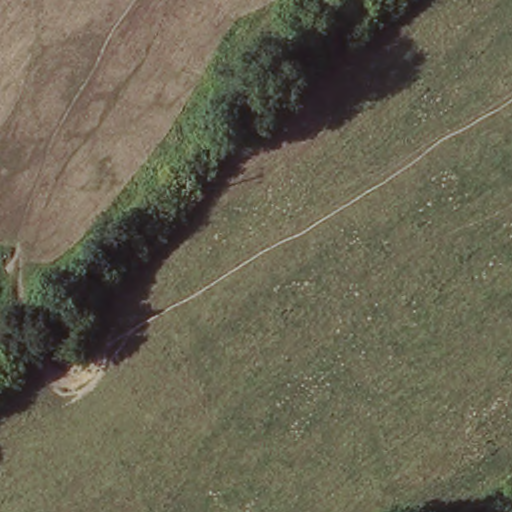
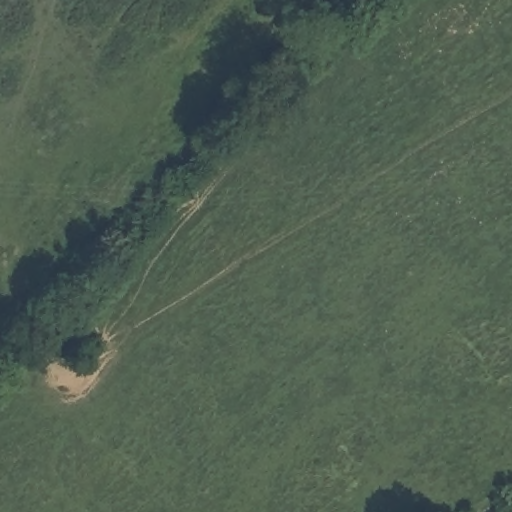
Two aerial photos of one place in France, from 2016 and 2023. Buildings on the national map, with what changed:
[]

